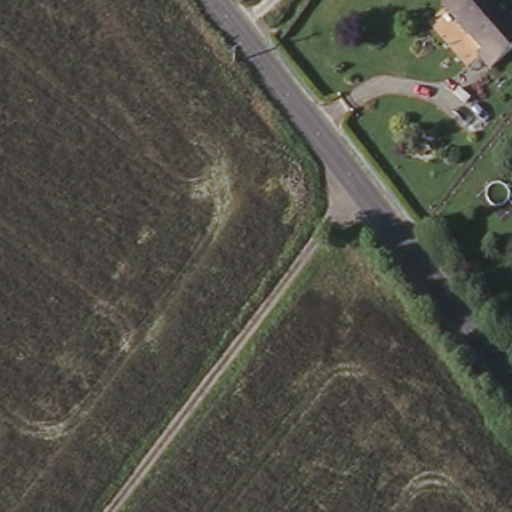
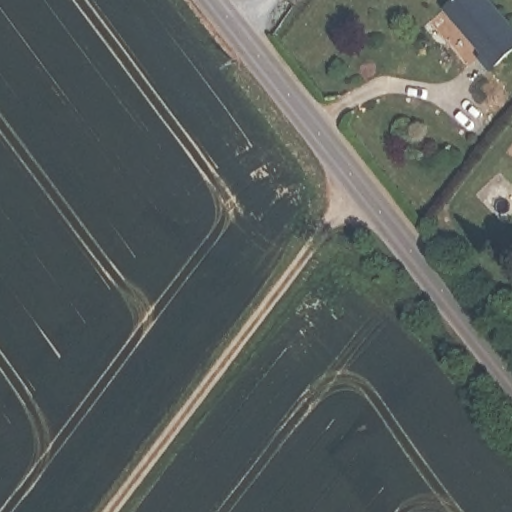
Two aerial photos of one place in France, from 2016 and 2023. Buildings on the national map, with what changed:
unchanged [(485,56),(488,52),(449,7),(457,0),(495,0),(512,20),(512,54),(494,68),(485,56)]

